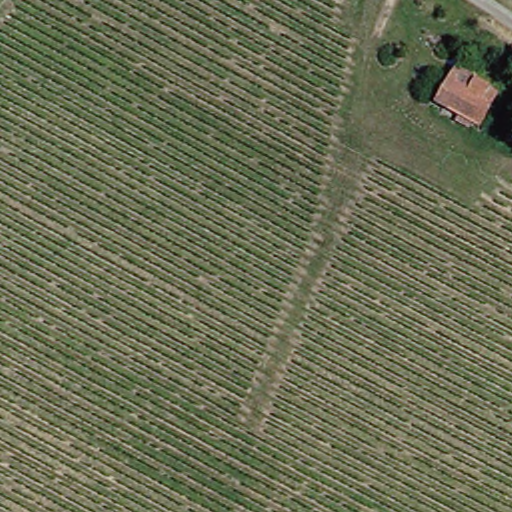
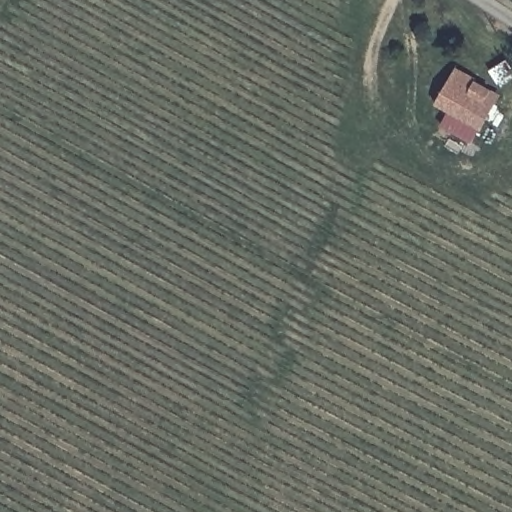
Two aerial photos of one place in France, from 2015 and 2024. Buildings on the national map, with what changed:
unchanged [(429,109),(451,71),(469,80),(466,85),(481,92),(493,97),(475,131),(453,121),(429,109)]

